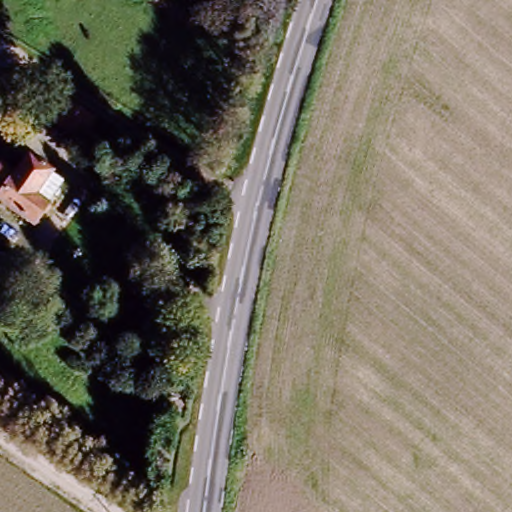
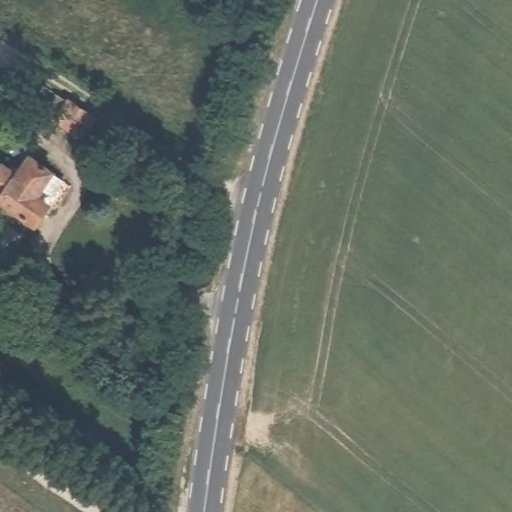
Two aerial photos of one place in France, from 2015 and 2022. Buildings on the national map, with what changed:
unchanged [(46,123),(61,100),(100,125),(85,149),(83,148),(81,151),(67,142),(70,139),(46,123)]
unchanged [(0,207),(5,200),(0,196),(0,183),(13,166),(24,175),(37,158),(65,179),(75,186),(62,204),(36,237),(0,210),(0,207)]

